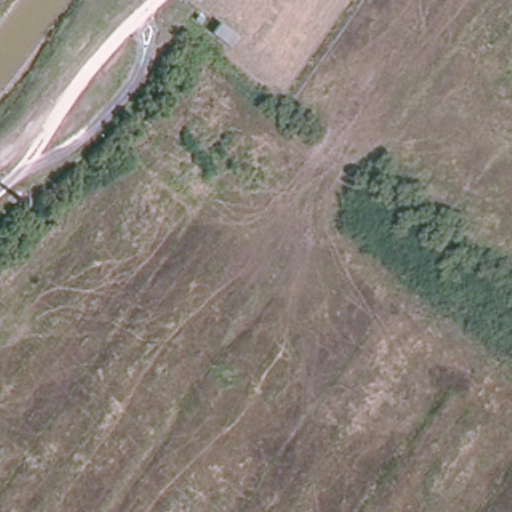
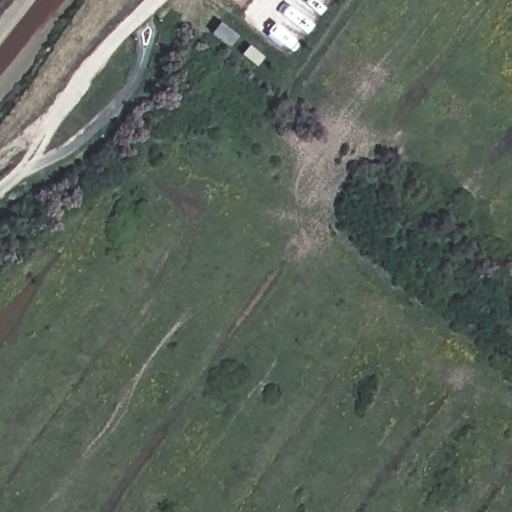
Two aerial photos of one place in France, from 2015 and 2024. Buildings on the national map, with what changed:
unchanged [(201,11),(208,17),(217,24),(209,34),(201,26),(193,20),(201,11)]

